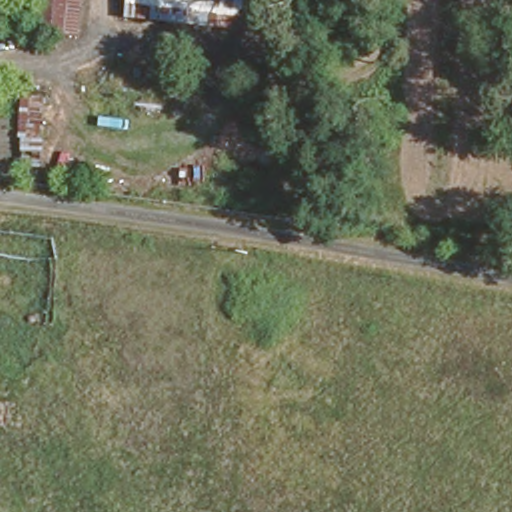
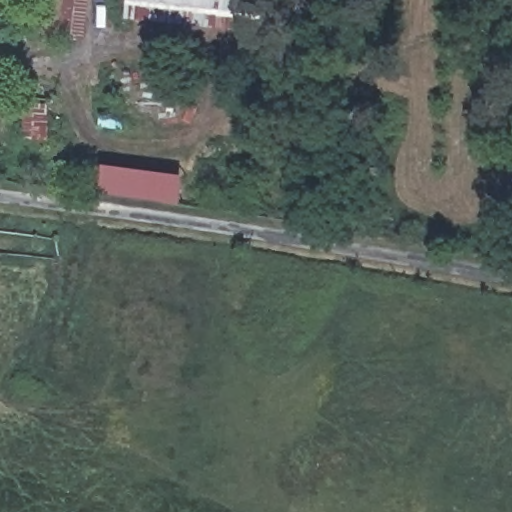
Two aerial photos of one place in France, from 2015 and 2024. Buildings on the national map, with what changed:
unchanged [(34,31),(37,0),(75,0),(71,34),(34,31)]
unchanged [(42,166),(21,162),(26,96),(44,99),(42,166)]
new [(182,176),(178,202),(99,190),(103,164),(182,176)]

